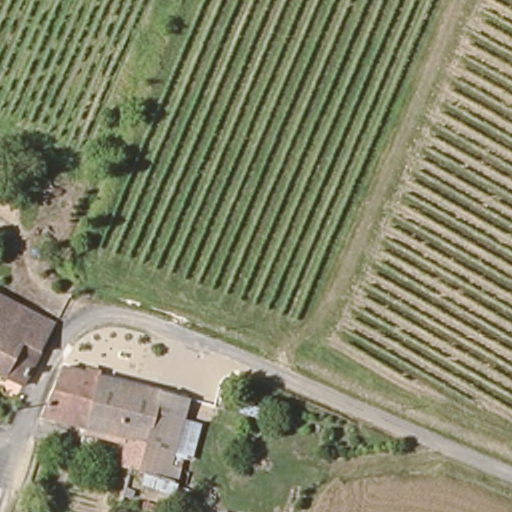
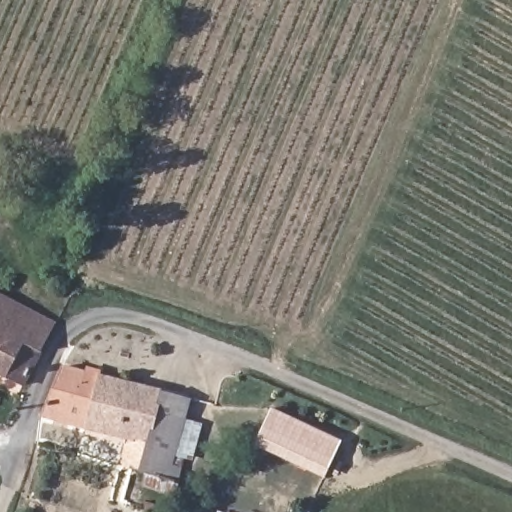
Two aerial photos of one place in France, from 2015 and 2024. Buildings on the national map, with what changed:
unchanged [(23,385),(0,374),(0,295),(55,324),(23,385)]
unchanged [(57,369),(67,372),(71,360),(82,363),(79,376),(189,403),(173,456),(184,460),(176,489),(138,476),(147,448),(41,420),(57,369)]
new [(344,443),(326,479),(257,447),(274,410),(344,443)]

